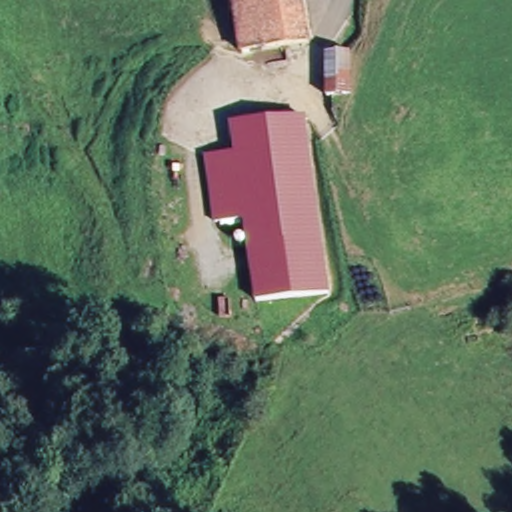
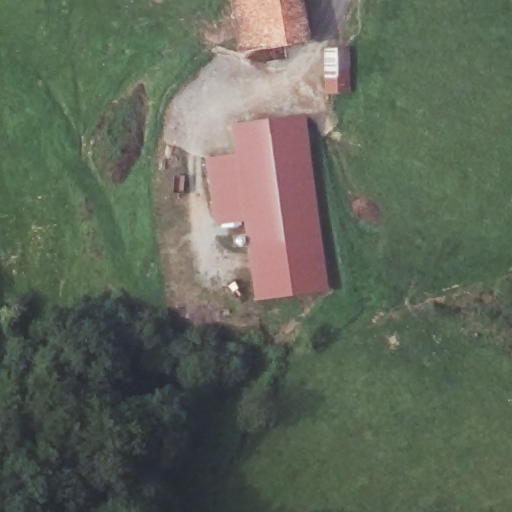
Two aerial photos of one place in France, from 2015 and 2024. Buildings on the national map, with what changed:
unchanged [(236,55),(227,0),(293,0),(301,41),(236,55)]
unchanged [(325,52),(345,51),(345,55),(345,95),(337,96),(326,96),(325,52)]
unchanged [(310,126),(332,289),(260,299),(249,220),(220,224),(211,158),(240,154),(236,124),(303,114),(308,113),(310,126)]

